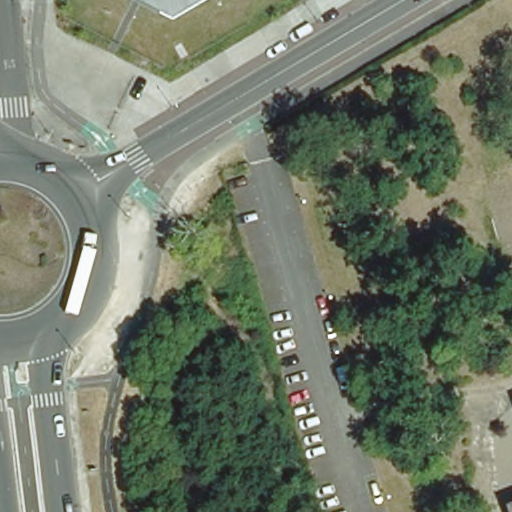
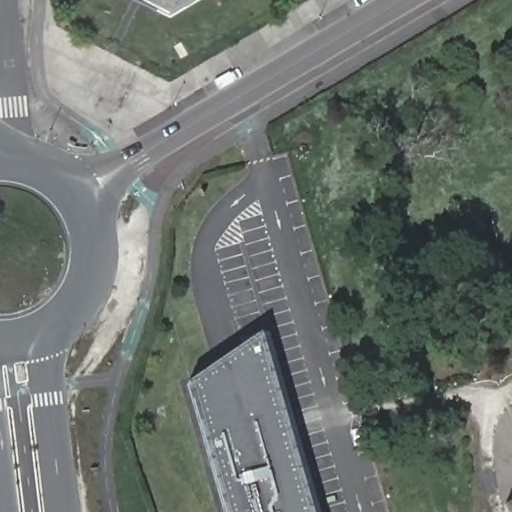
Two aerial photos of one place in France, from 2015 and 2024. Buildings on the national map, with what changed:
unchanged [(171,13),(145,0),(192,0),(171,13)]
new [(225,512),(188,385),(261,335),(314,512),(225,512)]
unchanged [(505,512),(504,510),(512,507),(512,512),(505,512)]

